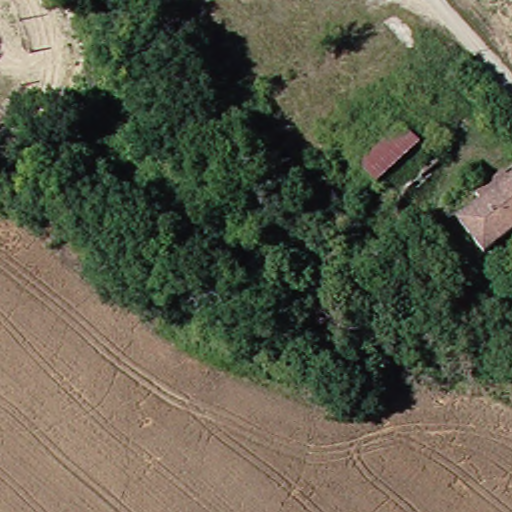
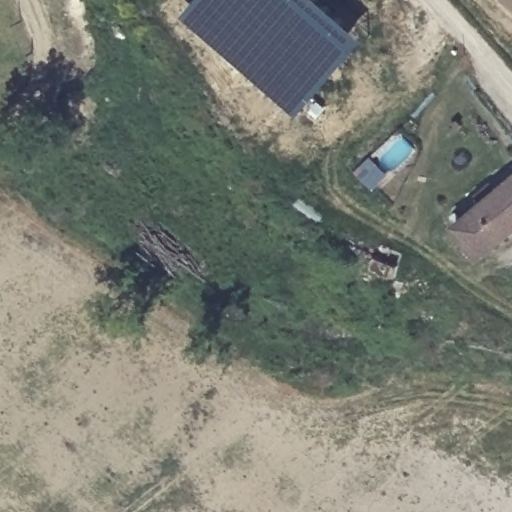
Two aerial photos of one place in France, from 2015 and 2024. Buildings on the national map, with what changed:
new [(200,0),(331,0),(371,36),(303,112),(190,11),(200,0)]
demolished [(406,126),(425,146),(382,186),(366,165),(406,126)]
unchanged [(468,230),(490,210),(484,201),(496,190),(509,177),(512,180),(512,242),(492,259),(468,230)]

